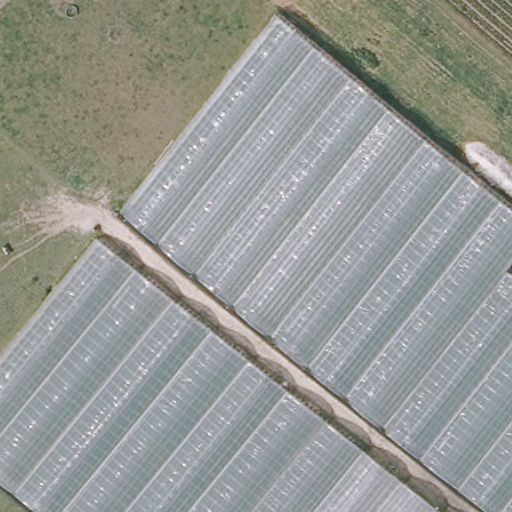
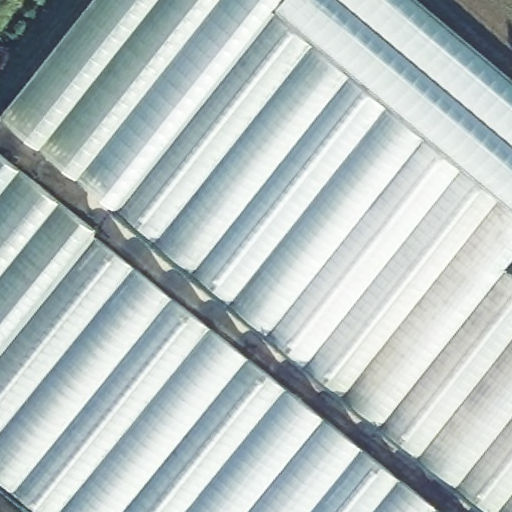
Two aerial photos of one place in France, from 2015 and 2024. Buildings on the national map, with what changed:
new [(119,208),(1,118),(95,0),(284,0),(274,13),(277,16),(119,208)]
new [(348,75),(277,16),(274,13),(284,0),(422,0),(512,76),(512,209),(489,189),(348,75)]
unchanged [(196,271),(119,208),(277,16),(348,75),(512,209),(512,259),(505,268),(512,274),(512,512),(490,512),(457,486),(196,271)]
new [(0,355),(0,152),(98,231),(95,234),(97,236),(0,355)]
unchanged [(0,482),(0,355),(97,236),(171,297),(285,386),(359,446),(436,508),(440,512),(38,512),(13,492),(0,482)]

